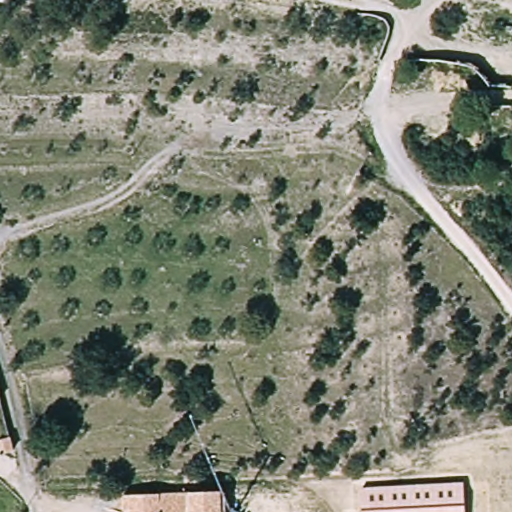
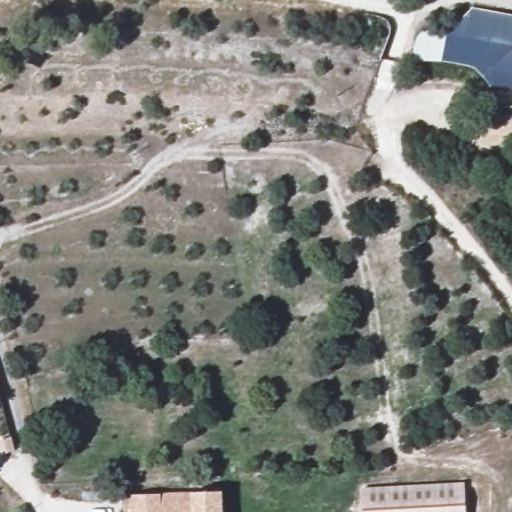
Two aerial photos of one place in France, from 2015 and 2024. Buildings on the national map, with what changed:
new [(473,8),(512,15),(512,47),(449,31),(473,8)]
new [(512,47),(512,90),(489,88),(478,69),(447,61),(413,59),(419,30),(431,33),(430,38),(446,41),(449,31),(512,47)]
unchanged [(0,400),(0,397),(1,400),(0,400)]
unchanged [(362,490),(466,483),(467,512),(364,512),(362,490)]
unchanged [(134,511),(124,511),(123,498),(192,493),(223,493),(223,512),(134,512),(134,511)]

